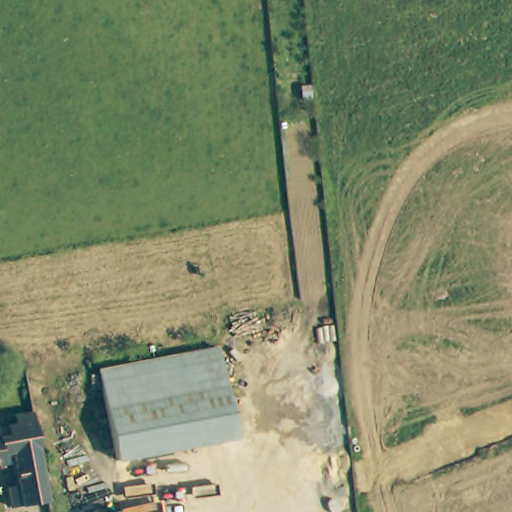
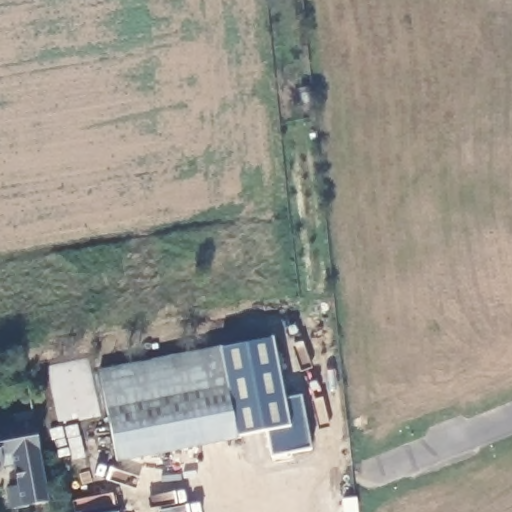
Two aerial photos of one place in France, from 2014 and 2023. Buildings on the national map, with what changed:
new [(267,431),(252,434),(238,349),(274,341),(284,399),(299,396),(308,448),(272,454),(267,431)]
unchanged [(238,349),(252,439),(104,462),(89,372),(238,349)]
unchanged [(17,485),(13,456),(6,457),(2,436),(8,436),(7,425),(15,424),(14,414),(33,412),(49,503),(22,507),(11,508),(7,487),(17,485)]
unchanged [(6,457),(7,464),(0,465),(0,425),(2,436),(6,457)]

